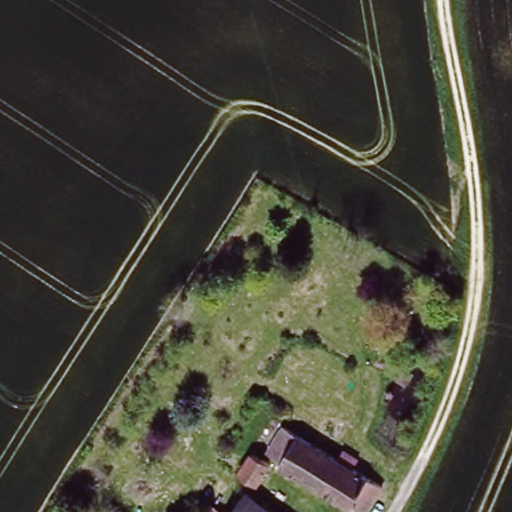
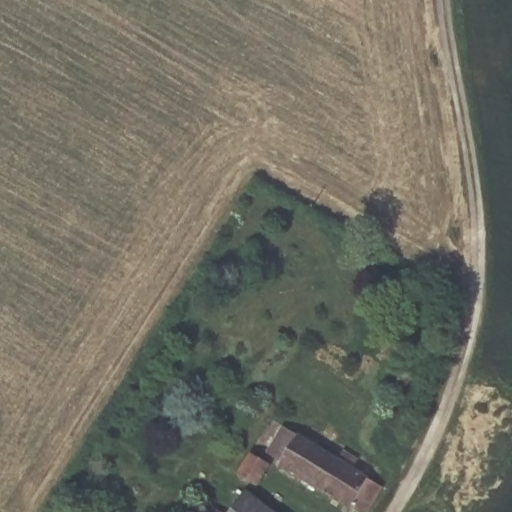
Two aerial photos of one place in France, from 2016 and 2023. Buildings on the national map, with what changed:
unchanged [(382,491),(369,512),(354,512),(268,457),(287,431),(382,491)]
unchanged [(269,467),(257,488),(240,478),(254,457),(269,467)]
unchanged [(263,512),(232,512),(242,497),(263,512)]

